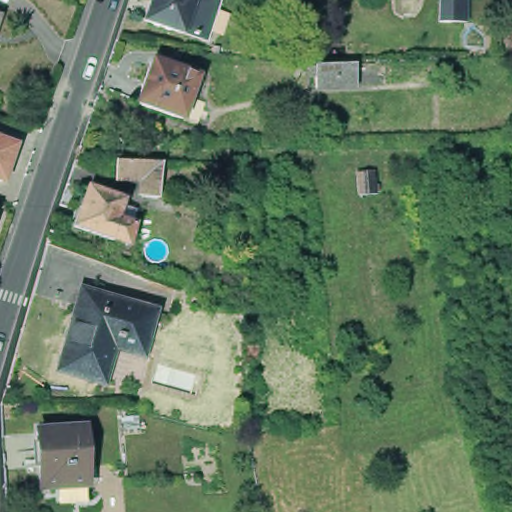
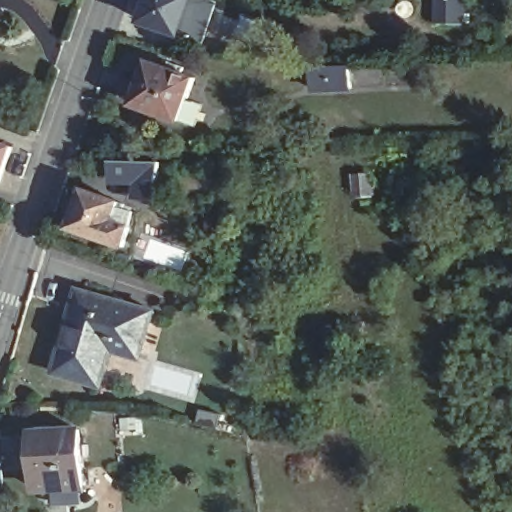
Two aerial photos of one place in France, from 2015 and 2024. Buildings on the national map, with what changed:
unchanged [(126,16),(131,0),(199,0),(186,36),(126,16)]
unchanged [(437,0),(462,0),(461,24),(450,24),(436,23),(437,0)]
unchanged [(177,120),(133,103),(150,60),(193,77),(177,120)]
unchanged [(320,71),(355,70),(356,92),(317,94),(317,71),(320,71)]
unchanged [(0,183),(0,143),(17,149),(4,185),(0,183)]
unchanged [(153,200),(138,197),(140,179),(111,178),(111,162),(141,162),(157,163),(153,200)]
unchanged [(123,246),(70,226),(83,190),(117,201),(115,207),(130,211),(127,225),(128,226),(123,246)]
unchanged [(2,237),(4,237),(0,247),(0,217),(9,220),(2,237)]
unchanged [(110,345),(100,380),(54,367),(68,317),(72,318),(78,300),(86,301),(90,288),(152,306),(142,342),(139,352),(110,345)]
unchanged [(82,486),(36,489),(32,432),(78,430),(82,486)]

